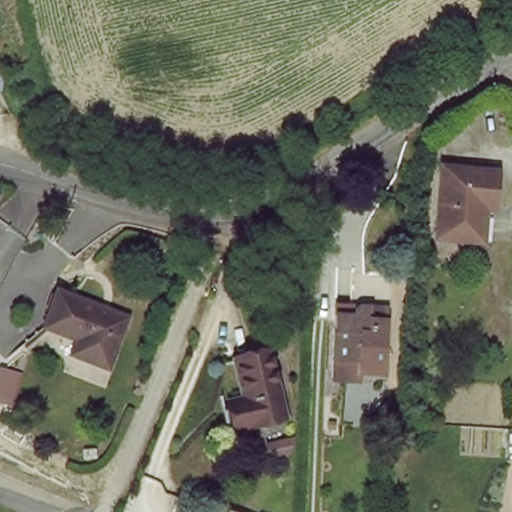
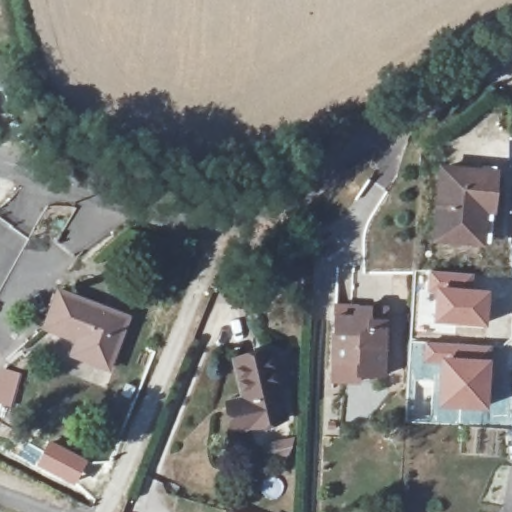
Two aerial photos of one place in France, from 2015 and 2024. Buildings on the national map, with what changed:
unchanged [(4,57),(0,77),(0,56),(4,57)]
unchanged [(435,237),(436,230),(443,165),(489,170),(495,170),(492,210),(485,209),(482,243),(435,237)]
new [(427,269),(475,272),(474,287),(490,288),(487,327),(428,323),(430,296),(424,295),(427,269)]
unchanged [(80,341),(46,328),(60,292),(131,320),(111,371),(82,360),(74,357),(80,341)]
unchanged [(336,377),(337,358),(342,312),(361,315),(363,311),(365,309),(368,307),(371,306),(393,308),(387,376),(362,374),(362,380),(336,377)]
new [(411,338),(493,344),(492,358),(439,356),(435,382),(409,383),(411,338)]
unchanged [(239,422),(235,398),(250,395),(243,355),(278,348),(290,412),(239,422)]
new [(430,395),(434,395),(435,382),(439,356),(492,358),(490,398),(490,409),(428,406),(430,395)]
new [(490,409),(490,398),(512,396),(512,426),(428,422),(428,406),(490,409)]

